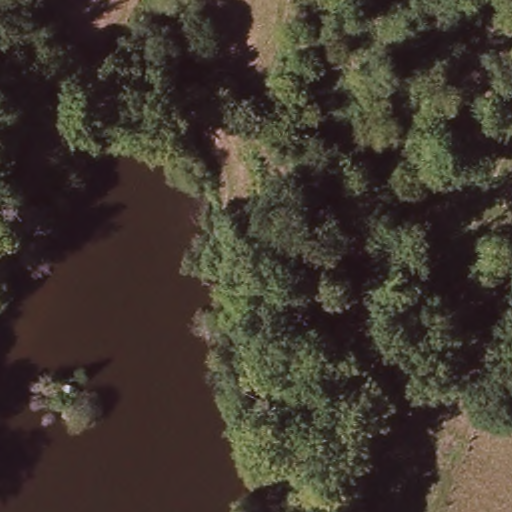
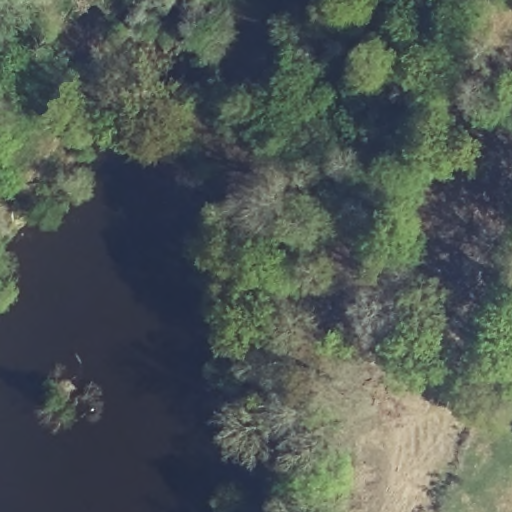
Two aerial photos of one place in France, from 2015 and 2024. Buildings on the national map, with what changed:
[]

